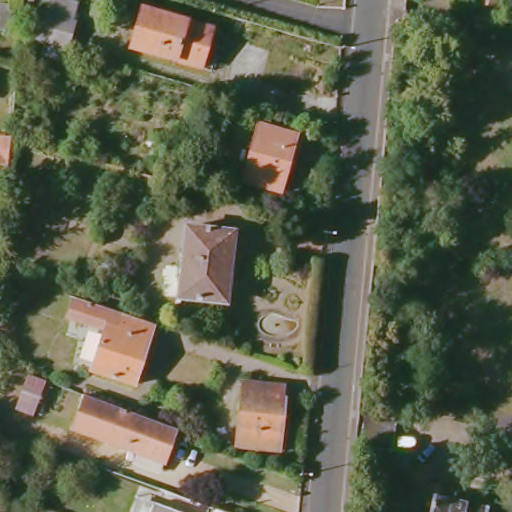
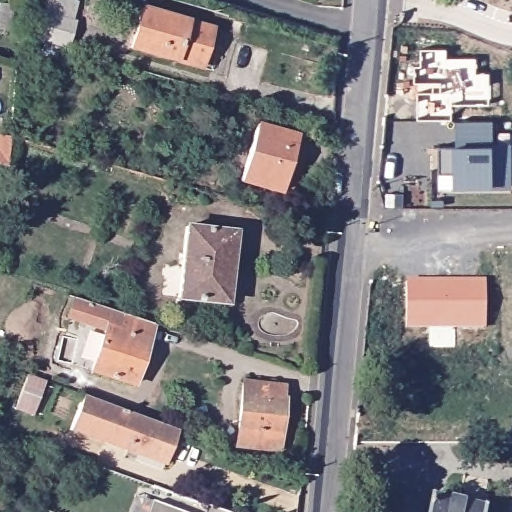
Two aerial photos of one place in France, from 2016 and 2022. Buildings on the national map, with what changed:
unchanged [(471,0),(499,0),(498,6),(470,4),(471,0)]
unchanged [(39,10),(70,20),(63,45),(31,36),(39,10)]
unchanged [(140,10),(178,20),(210,29),(199,68),(130,48),(140,10)]
new [(437,146),(455,146),(455,120),(492,120),(492,146),(509,146),(509,185),(455,186),(455,173),(437,173),(437,146)]
unchanged [(253,125),(291,136),(276,192),(237,181),(253,125)]
unchanged [(184,229),(231,234),(223,305),(175,300),(184,229)]
new [(405,284),(483,284),(483,329),(405,329),(405,284)]
unchanged [(85,371),(97,330),(62,318),(68,300),(145,325),(126,385),(85,371)]
unchanged [(29,376),(47,383),(34,416),(16,410),(29,376)]
unchanged [(241,383),(278,387),(277,401),(280,401),(275,451),(235,447),(241,383)]
unchanged [(84,397),(142,419),(148,421),(177,432),(164,466),(71,430),(84,397)]
unchanged [(363,410),(393,412),(390,450),(360,447),(363,410)]
unchanged [(436,504),(471,512),(434,512),(436,504)]
unchanged [(151,505),(171,512),(149,512),(151,505)]
unchanged [(206,508),(215,512),(205,512),(206,508)]

